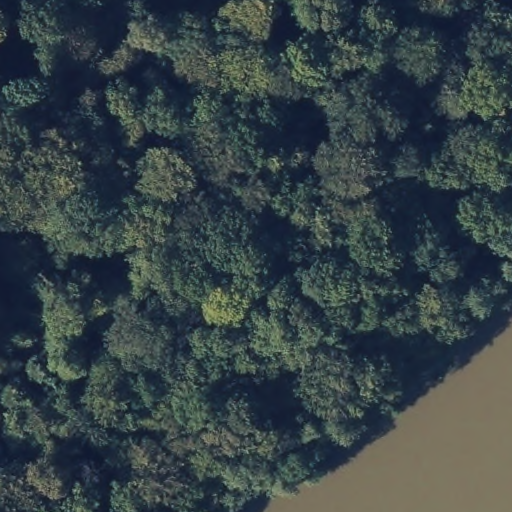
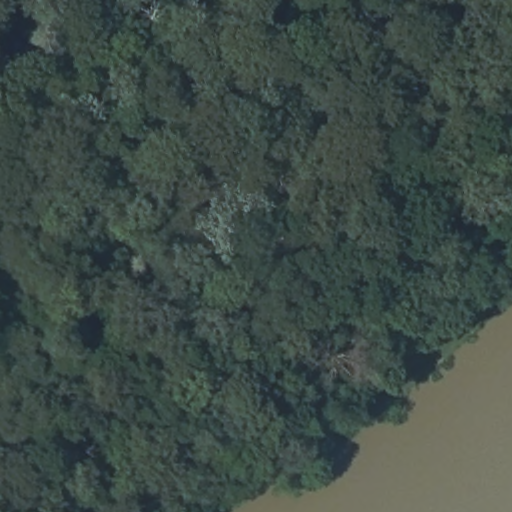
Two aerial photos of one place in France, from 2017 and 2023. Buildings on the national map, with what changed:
[]

